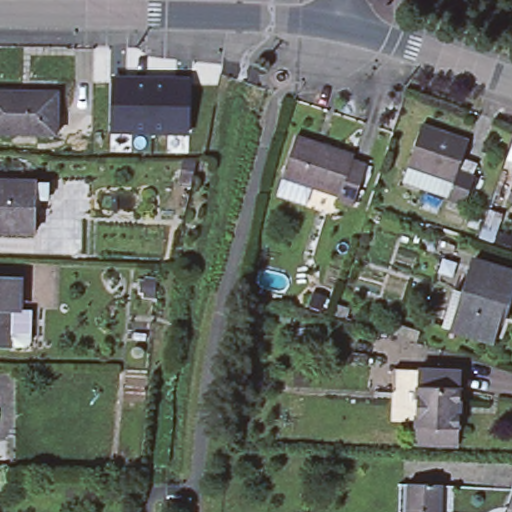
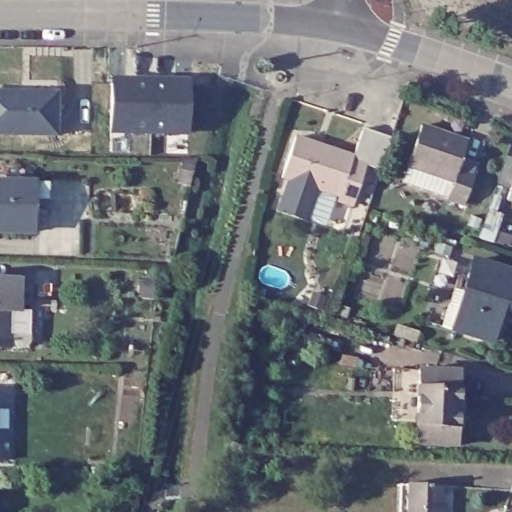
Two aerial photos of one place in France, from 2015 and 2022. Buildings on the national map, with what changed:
unchanged [(188,80),(190,134),(112,133),(112,79),(188,80)]
unchanged [(20,88),(20,92),(57,92),(55,132),(0,131),(0,88),(20,88)]
unchanged [(407,166),(423,125),(469,142),(458,170),(473,176),(462,205),(447,199),(454,182),(407,166)]
unchanged [(285,173),(300,133),(355,153),(352,160),(369,166),(354,207),(337,201),(340,193),(285,173)]
unchanged [(30,178),(44,179),(43,194),(29,193),(29,229),(0,228),(0,178),(30,178)]
unchanged [(512,182),(512,197),(507,195),(512,182)]
unchanged [(452,289),(462,292),(472,260),(512,274),(512,286),(501,317),(497,315),(487,341),(449,328),(440,325),(447,303),(452,289)]
unchanged [(33,333),(9,332),(9,346),(0,346),(0,281),(4,281),(19,282),(17,316),(34,316),(33,333)]
unchanged [(420,373),(460,376),(455,448),(415,445),(420,373)]
unchanged [(396,512),(397,487),(407,487),(439,488),(438,512),(396,512)]

